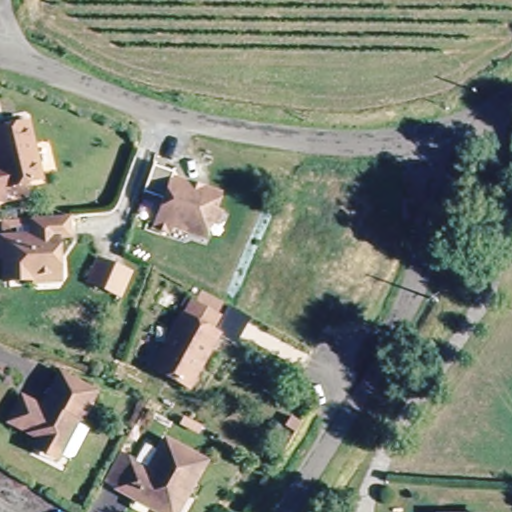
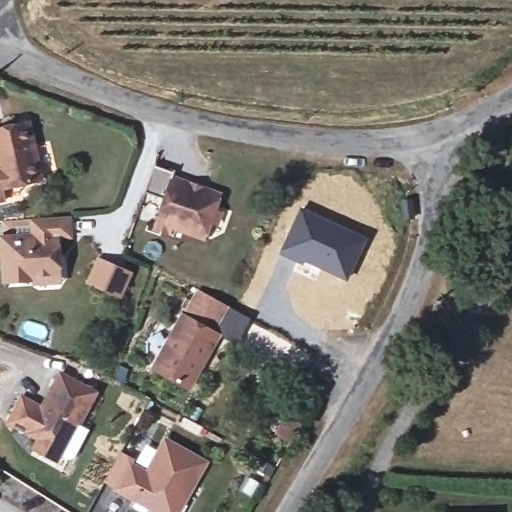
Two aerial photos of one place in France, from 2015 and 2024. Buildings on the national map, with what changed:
unchanged [(37,179),(0,184),(0,124),(29,120),(37,179)]
unchanged [(153,156),(173,162),(171,169),(222,188),(204,235),(172,223),(170,231),(150,223),(162,192),(142,185),(153,156)]
unchanged [(402,197),(407,216),(400,218),(395,200),(402,197)]
new [(301,206),(368,237),(347,282),(278,254),(301,206)]
unchanged [(30,276),(7,276),(5,251),(0,251),(0,235),(34,232),(32,215),(70,212),(72,234),(59,236),(60,251),(61,281),(31,283),(30,276)]
unchanged [(102,266),(134,279),(123,303),(91,289),(102,266)]
unchanged [(184,316),(191,303),(219,317),(227,302),(247,313),(232,342),(218,334),(191,386),(152,365),(179,313),(184,316)]
unchanged [(34,437),(4,420),(19,395),(38,405),(55,376),(87,395),(74,422),(70,419),(69,422),(81,427),(66,456),(60,458),(52,453),(52,455),(49,461),(27,449),(31,443),(34,437)]
unchanged [(103,479),(119,451),(132,458),(130,462),(147,471),(167,436),(207,460),(189,493),(178,512),(162,512),(103,479)]

